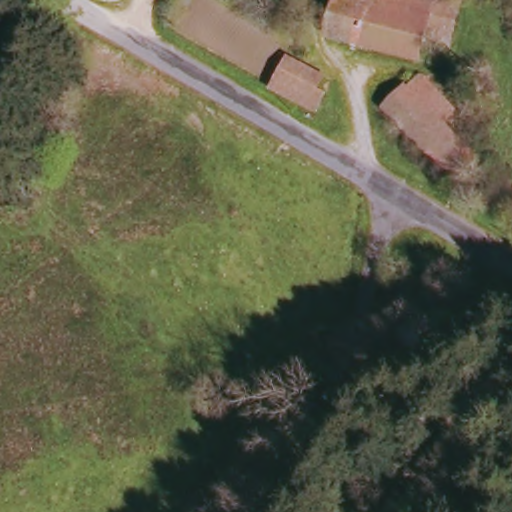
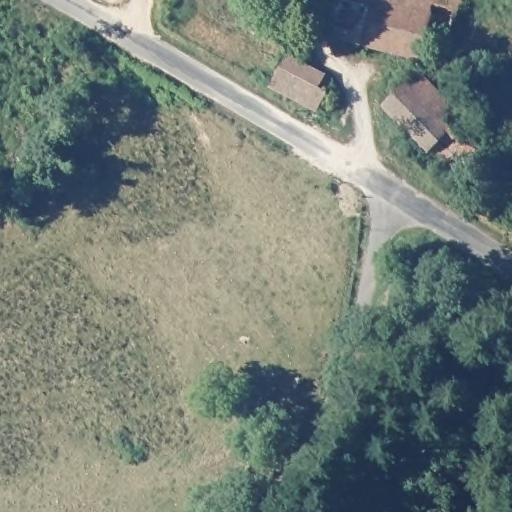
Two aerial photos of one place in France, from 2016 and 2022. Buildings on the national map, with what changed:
unchanged [(426,37),(420,61),(328,37),(338,0),(435,0),(426,37)]
unchanged [(448,42),(426,37),(435,0),(459,0),(448,42)]
unchanged [(276,87),(287,66),(295,70),(320,83),(310,105),(285,92),(276,87)]
unchanged [(419,72),(453,107),(442,120),(475,156),(457,178),(443,164),(437,171),(427,164),(433,155),(388,106),(419,72)]

